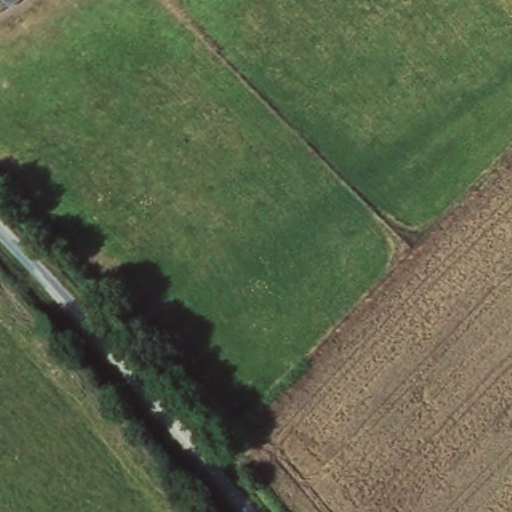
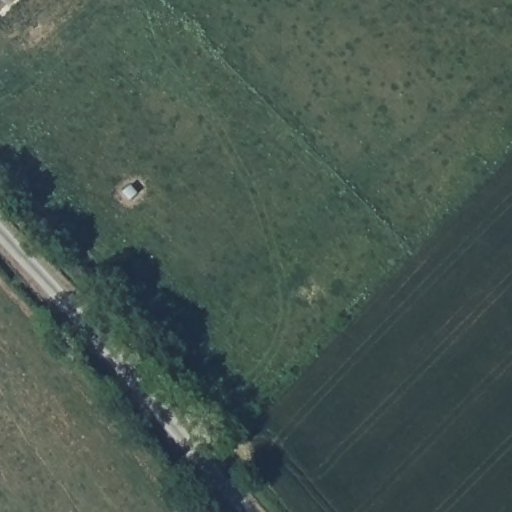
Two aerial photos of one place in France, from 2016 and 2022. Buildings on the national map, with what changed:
unchanged [(17,0),(12,4),(9,0),(17,0)]

